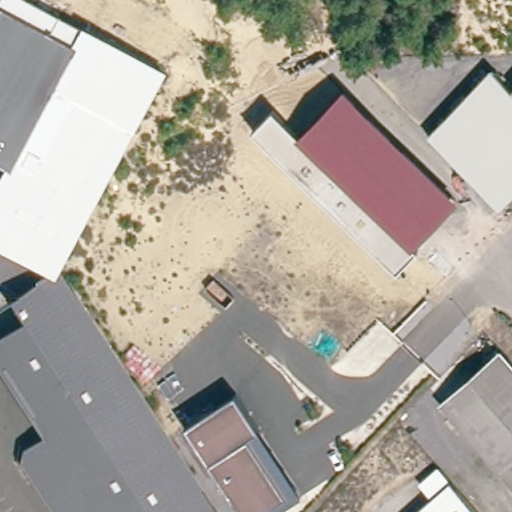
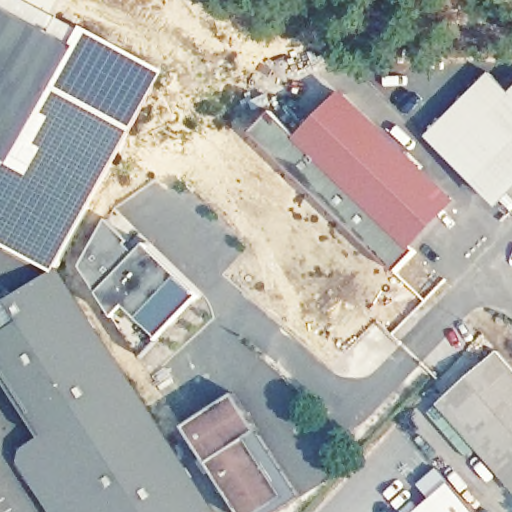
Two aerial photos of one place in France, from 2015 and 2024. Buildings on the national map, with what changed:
unchanged [(79,27),(69,46),(0,9),(0,0),(28,0),(79,27)]
unchanged [(131,125),(111,161),(56,264),(0,234),(0,206),(5,210),(25,172),(17,169),(28,147),(17,141),(0,132),(0,9),(69,46),(79,27),(161,72),(131,125)]
unchanged [(441,149),(503,84),(512,92),(512,199),(503,208),(441,149)]
unchanged [(416,247),(395,268),(253,133),(249,129),(270,107),(298,135),(340,90),(447,192),(458,203),(416,247)]
unchanged [(17,141),(12,152),(0,146),(0,132),(17,141)]
new [(107,219),(139,250),(96,292),(79,266),(107,219)]
new [(139,250),(146,242),(201,295),(158,339),(126,307),(114,318),(96,292),(139,250)]
unchanged [(152,412),(216,510),(212,512),(53,512),(18,460),(22,445),(39,434),(39,433),(0,374),(0,331),(18,318),(4,297),(56,264),(139,392),(152,412)]
unchanged [(512,469),(497,482),(436,413),(497,360),(512,377),(512,469)]
unchanged [(252,512),(237,512),(178,423),(229,390),(254,426),(243,433),(282,492),(257,508),(252,512)]
unchanged [(266,512),(259,512),(257,508),(282,492),(243,433),(254,426),(297,491),(266,512)]
unchanged [(512,498),(497,482),(512,469),(512,498)]
unchanged [(471,512),(428,512),(452,490),(471,512)]

